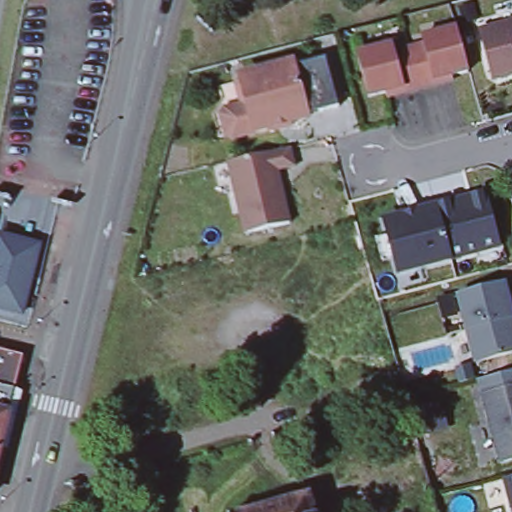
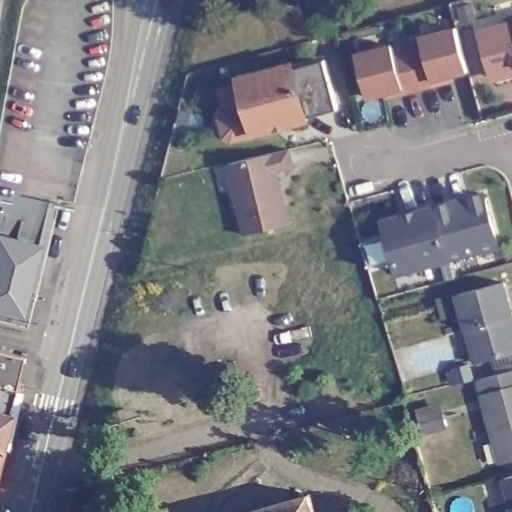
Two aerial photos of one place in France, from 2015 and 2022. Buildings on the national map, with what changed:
unchanged [(512,73),(497,78),(490,74),(478,31),(512,22),(512,73)]
unchanged [(385,98),(370,103),(357,60),(390,50),(392,55),(422,46),(421,41),(456,31),(468,73),(450,78),(452,83),(435,88),(404,97),(387,102),(385,98)]
unchanged [(240,74),(290,60),(291,65),(322,56),(337,106),(306,115),(307,118),(231,139),(223,136),(217,115),(222,109),(242,103),(236,81),(240,74)]
unchanged [(289,151),(293,169),(277,173),(290,226),(247,238),(228,166),(289,151)]
unchanged [(400,217),(483,193),(497,246),(397,274),(382,222),(400,217)]
unchanged [(38,246),(21,314),(0,309),(0,236),(38,246)]
unchanged [(466,330),(457,296),(503,283),(512,313),(512,353),(475,363),(457,369),(447,336),(466,330)]
unchanged [(28,365),(13,424),(0,421),(0,359),(28,365)]
unchanged [(480,403),(477,390),(512,380),(512,467),(498,471),(480,403)]
unchanged [(442,406),(447,428),(426,433),(420,412),(442,406)]
unchanged [(13,424),(0,473),(0,421),(13,424)]
unchanged [(512,474),(512,512),(508,512),(500,478),(500,477),(512,474)]
unchanged [(309,495),(314,512),(250,512),(309,495)]

